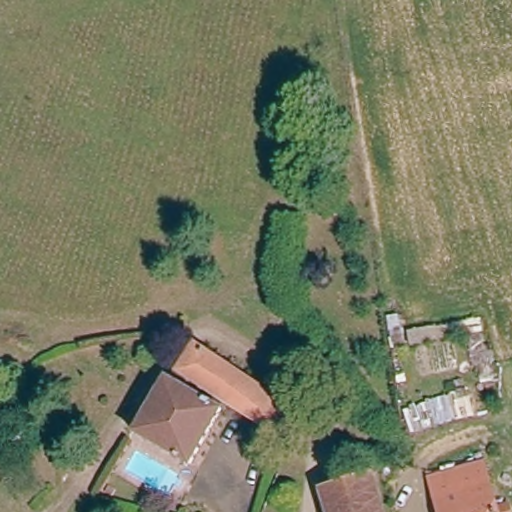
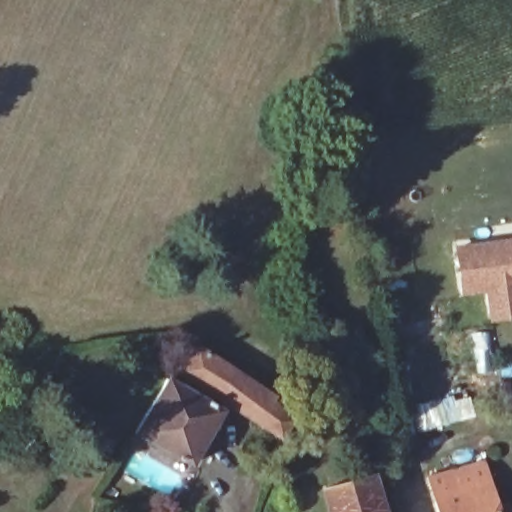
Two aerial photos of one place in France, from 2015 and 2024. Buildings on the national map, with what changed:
new [(512,277),(512,282),(512,315),(483,318),(480,289),(455,292),(450,247),(492,242),(512,239),(512,277)]
unchanged [(268,403),(285,414),(277,431),(181,370),(196,342),(273,394),(268,403)]
unchanged [(217,407),(188,458),(137,426),(167,376),(217,407)]
unchanged [(433,401),(436,415),(407,418),(404,404),(433,401)]
unchanged [(500,507),(501,512),(439,512),(432,470),(479,464),(486,497),(488,509),(500,507)]
unchanged [(325,512),(318,492),(367,475),(378,512),(325,512)]

